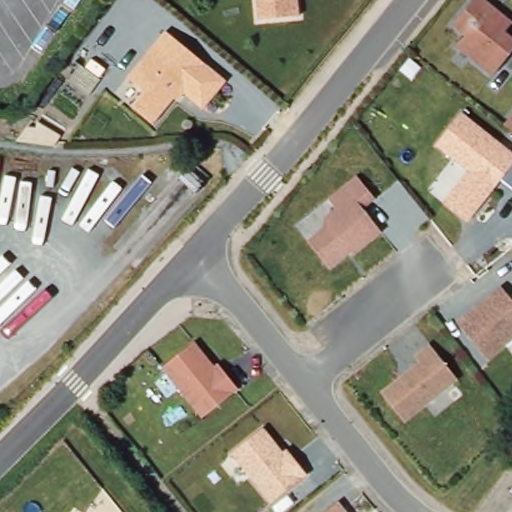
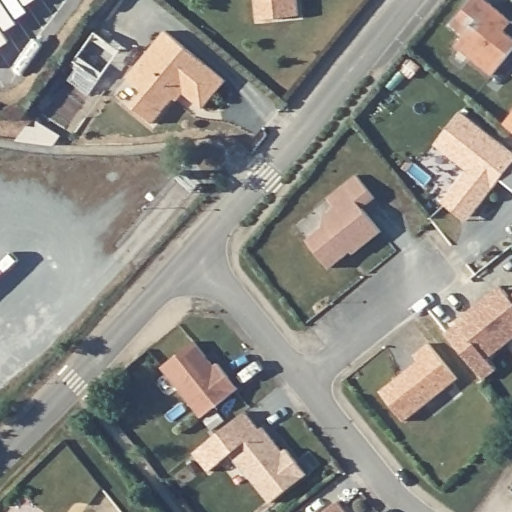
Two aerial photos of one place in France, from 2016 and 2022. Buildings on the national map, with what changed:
unchanged [(253,30),(250,0),(291,0),(294,25),(253,30)]
unchanged [(474,0),(495,0),(509,12),(512,15),(512,26),(510,29),(512,31),(512,51),(495,71),(460,40),(468,30),(456,20),(474,0)]
unchanged [(168,30),(229,77),(206,106),(187,90),(180,90),(155,121),(134,104),(146,89),(131,76),(168,30)]
unchanged [(463,211),(445,196),(460,177),(470,165),(438,139),(464,106),(512,144),(512,163),(485,197),(473,211),(470,215),(463,211)]
unchanged [(32,123),(37,117),(40,118),(64,121),(50,138),(45,137),(13,132),(22,121),(32,123)]
unchanged [(510,121),(512,118),(512,123),(510,121)]
new [(512,163),(512,190),(498,180),(512,163)]
unchanged [(331,270),(309,241),(325,229),(326,217),(337,209),(330,200),(359,176),(377,200),(365,210),(382,233),(355,255),(352,252),(347,257),(331,270)]
unchanged [(488,356),(458,318),(491,291),(502,282),(505,286),(512,295),(512,337),(488,356)]
unchanged [(164,361),(195,336),(215,361),(220,358),(240,383),(204,412),(164,361)]
unchanged [(420,358),(415,352),(430,340),(458,376),(405,418),(381,388),(420,358)]
new [(231,448),(235,451),(210,471),(194,453),(246,411),(258,426),(231,448)]
unchanged [(231,448),(264,422),(283,447),(287,445),(307,470),(271,498),(231,448)]
unchanged [(350,512),(320,512),(338,497),(350,512)]

